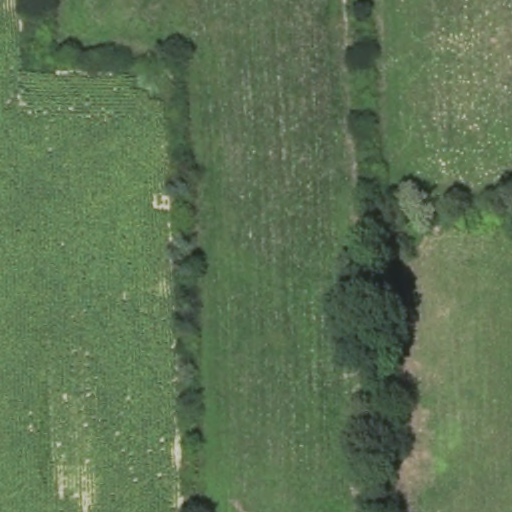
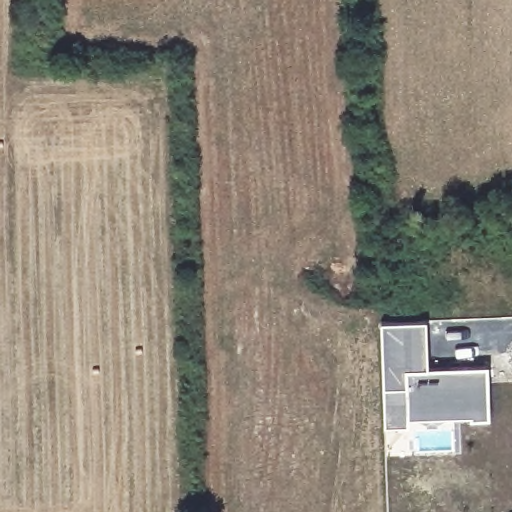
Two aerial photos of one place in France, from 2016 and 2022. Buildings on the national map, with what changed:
new [(385,425),(383,385),(381,320),(426,317),(429,365),(489,361),(492,415),(473,416),(472,408),(409,411),(408,424),(385,425)]

